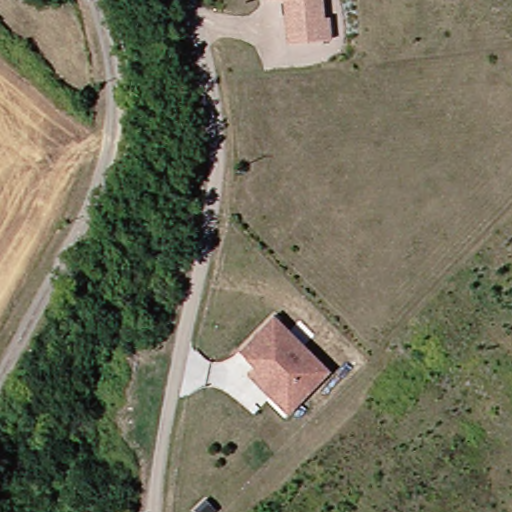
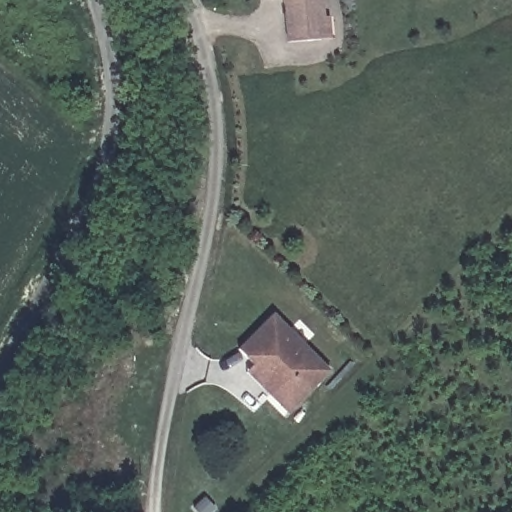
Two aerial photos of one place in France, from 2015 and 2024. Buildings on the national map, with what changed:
unchanged [(319,37),(284,40),(281,0),(322,0),(323,16),(328,16),(330,37),(319,37)]
unchanged [(254,360),(239,344),(277,310),(331,370),(286,410),(269,391),(247,367),(254,360)]

